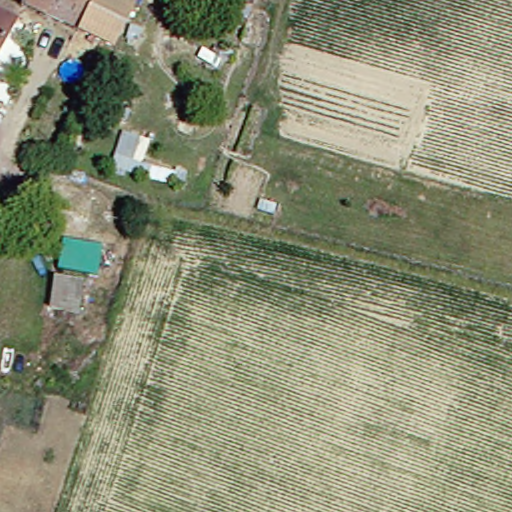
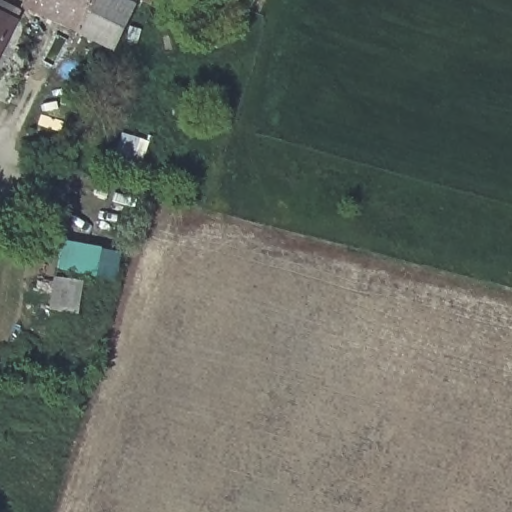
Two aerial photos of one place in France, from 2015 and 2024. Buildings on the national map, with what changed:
unchanged [(30,0),(97,0),(86,25),(29,2),(30,0)]
unchanged [(97,0),(139,0),(123,38),(122,41),(86,25),(97,0)]
unchanged [(0,61),(0,3),(23,15),(0,61)]
unchanged [(63,236),(105,243),(99,274),(59,267),(63,236)]
unchanged [(86,280),(81,313),(49,307),(54,275),(86,280)]

